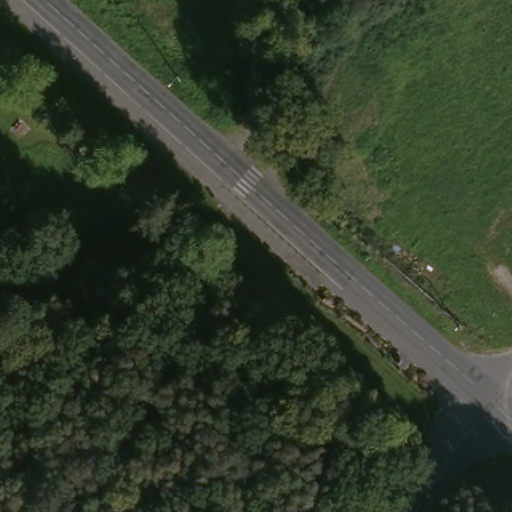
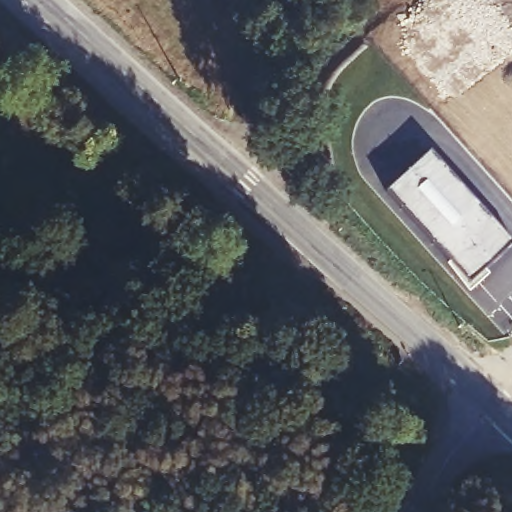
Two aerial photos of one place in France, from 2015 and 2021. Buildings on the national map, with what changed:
new [(427,146),(511,239),(465,279),(385,187),(427,146)]

